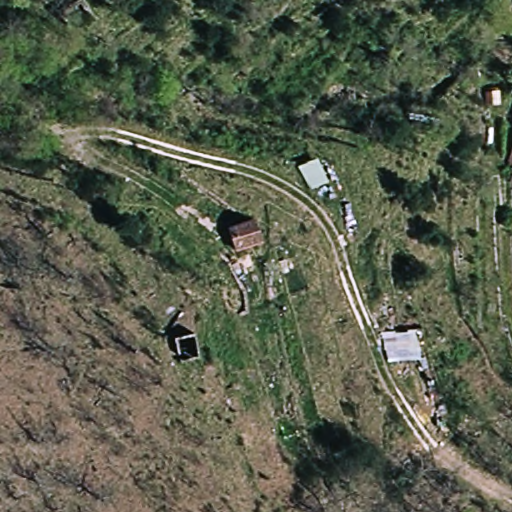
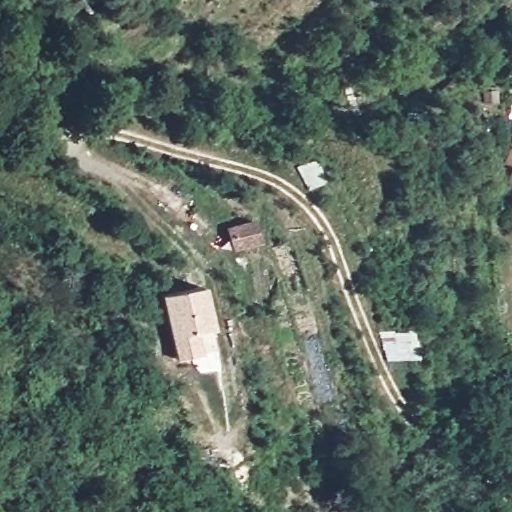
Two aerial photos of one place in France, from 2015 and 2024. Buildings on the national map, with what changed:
unchanged [(67,22),(85,7),(98,22),(80,38),(67,22)]
unchanged [(505,168),(512,146),(512,170),(505,168)]
unchanged [(229,232),(250,224),(257,243),(237,251),(229,232)]
new [(160,296),(200,286),(215,351),(175,359),(160,296)]
demolished [(170,349),(188,368),(172,385),(154,364),(170,349)]

